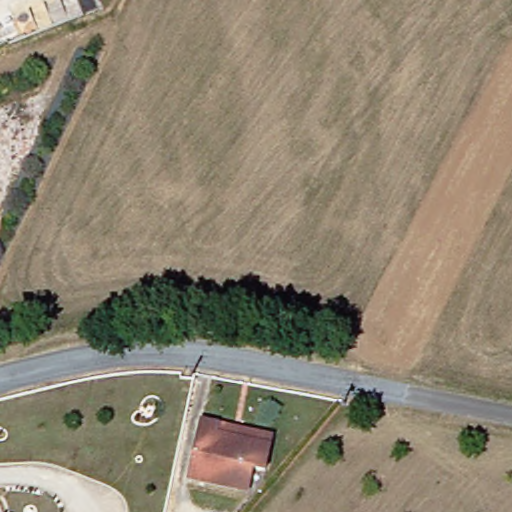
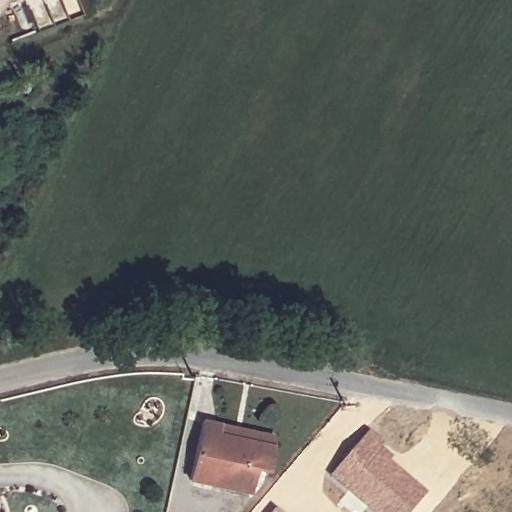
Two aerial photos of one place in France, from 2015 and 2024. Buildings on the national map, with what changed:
unchanged [(259,470),(254,493),(195,480),(207,423),(224,427),(278,440),(276,449),(271,473),(259,470)]
new [(393,459),(390,464),(428,494),(413,512),(368,512),(329,479),(370,432),(385,445),(382,449),(393,459)]
new [(280,512),(272,512),(275,508),(280,512)]

